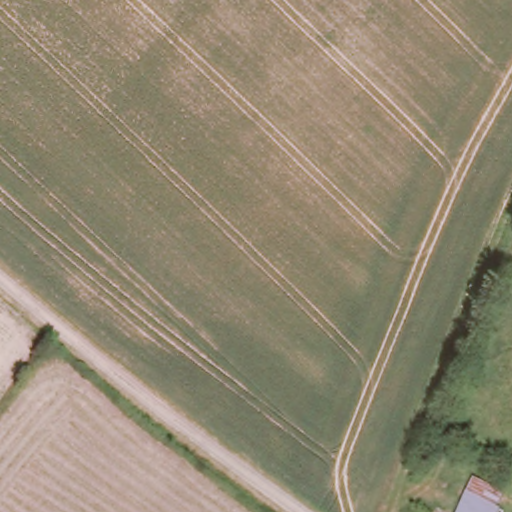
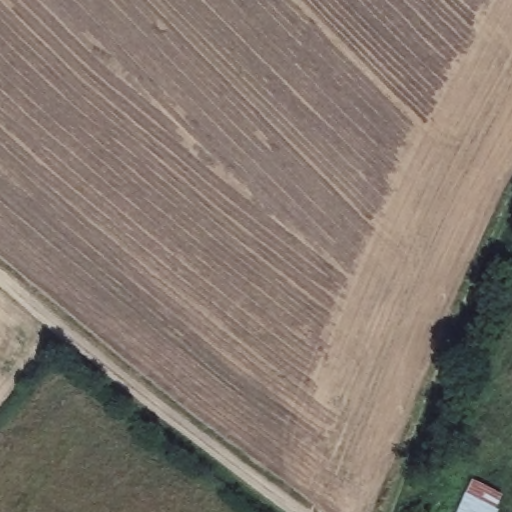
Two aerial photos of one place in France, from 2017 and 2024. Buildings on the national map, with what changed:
unchanged [(470,489),(500,502),(496,512),(460,512),(470,489)]

